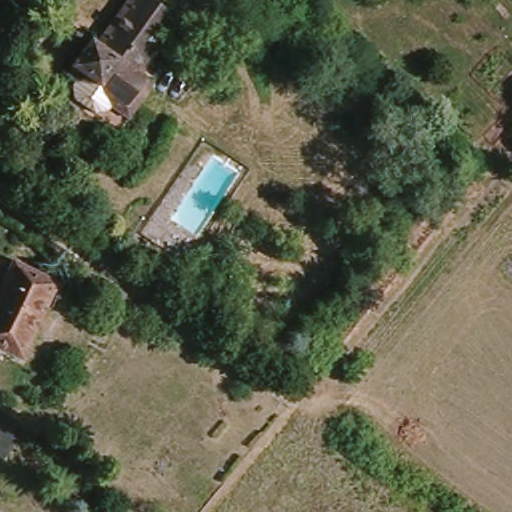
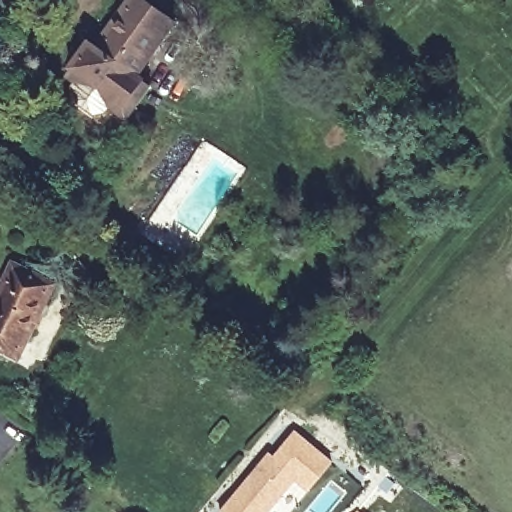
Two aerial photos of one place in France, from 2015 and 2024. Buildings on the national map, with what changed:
unchanged [(80,45),(87,49),(122,0),(131,0),(163,24),(125,79),(138,87),(117,116),(59,75),(80,45)]
unchanged [(20,360),(0,349),(0,289),(10,265),(21,270),(55,287),(20,360)]
unchanged [(104,280),(124,295),(116,308),(95,291),(104,280)]
new [(268,450),(272,454),(294,428),(333,462),(307,492),(295,482),(269,512),(219,512),(218,511),(268,450)]

